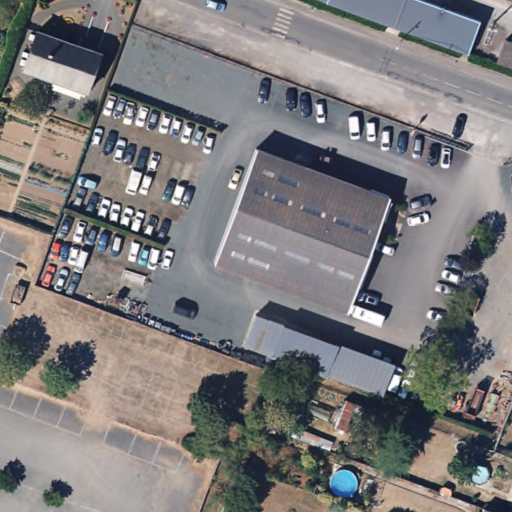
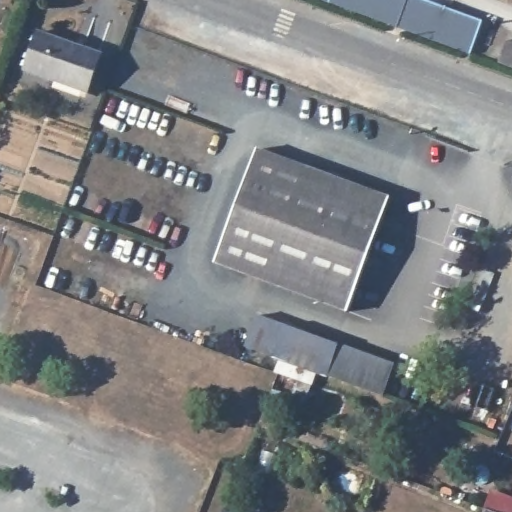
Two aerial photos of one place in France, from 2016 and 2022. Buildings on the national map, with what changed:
unchanged [(481,24),(470,57),(316,0),(417,0),(481,24)]
unchanged [(101,52),(87,91),(26,68),(39,30),(101,52)]
unchanged [(512,42),(512,67),(500,63),(507,41),(512,42)]
unchanged [(5,84),(8,85),(9,82),(12,84),(7,99),(0,119),(0,96),(0,97),(5,84)]
unchanged [(384,196),(346,311),(220,264),(258,151),(384,196)]
unchanged [(283,321),(282,326),(395,361),(386,392),(246,346),(256,314),(283,321)]
unchanged [(230,512),(232,505),(252,512),(230,512)]
unchanged [(509,512),(488,512),(490,505),(509,512)]

